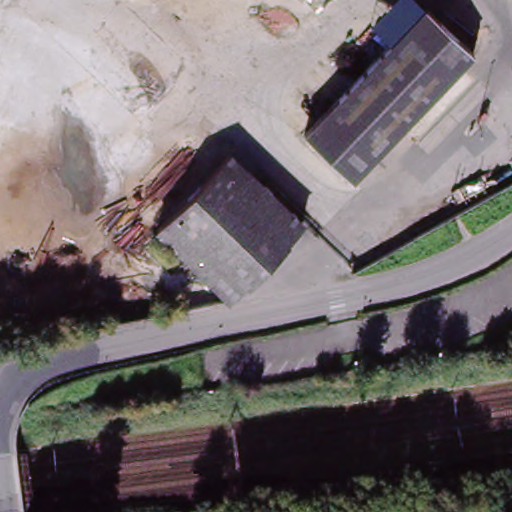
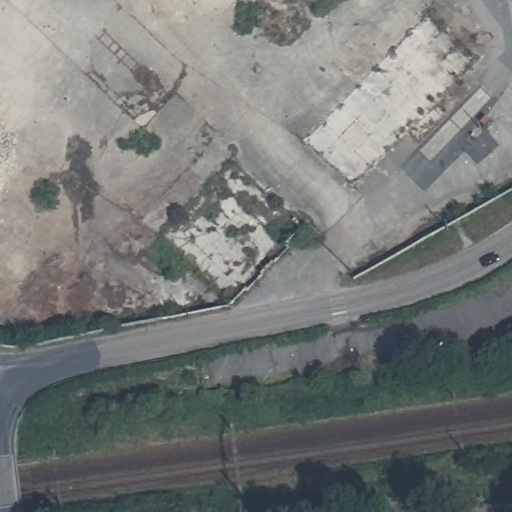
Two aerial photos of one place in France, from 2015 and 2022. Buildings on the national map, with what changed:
demolished [(351,184),(304,137),(426,13),(473,59),(351,184)]
demolished [(0,161),(0,126),(14,133),(0,161)]
demolished [(289,245),(289,246),(246,290),(244,290),(228,305),(141,219),(202,156),(219,173),(233,161),(304,230),(289,245)]

